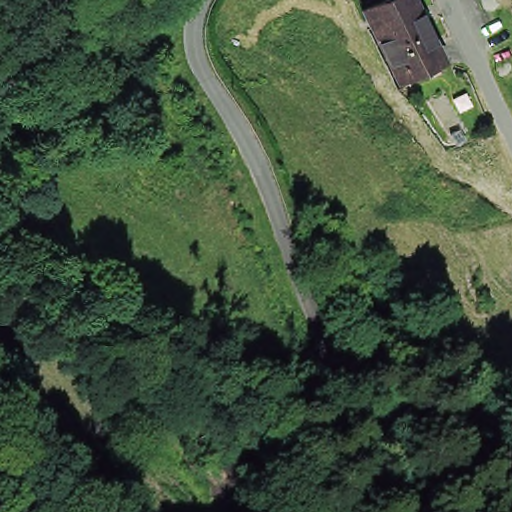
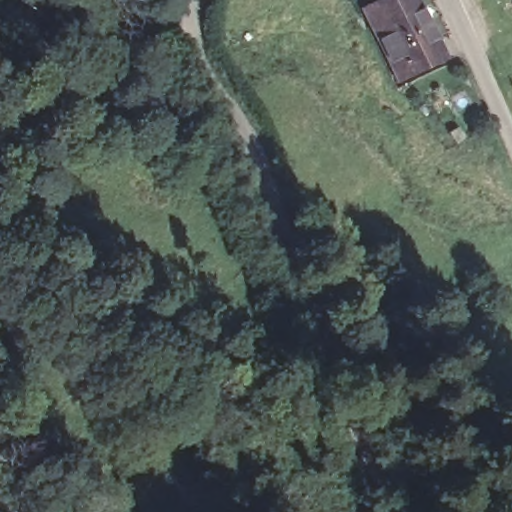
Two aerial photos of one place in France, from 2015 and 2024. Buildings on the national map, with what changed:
unchanged [(363,1),(365,0),(414,0),(374,24),(363,1)]
unchanged [(399,75),(374,24),(414,0),(415,0),(442,54),(399,75)]

